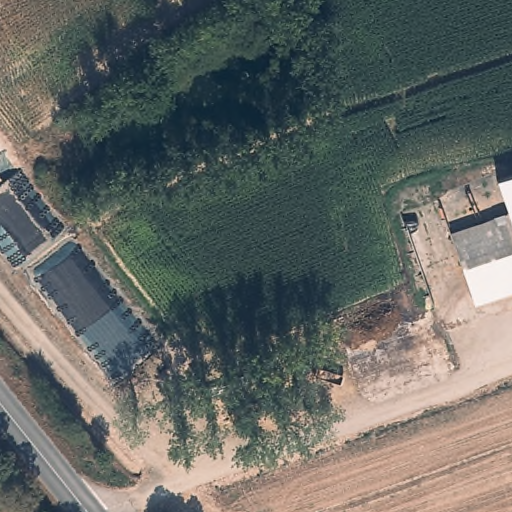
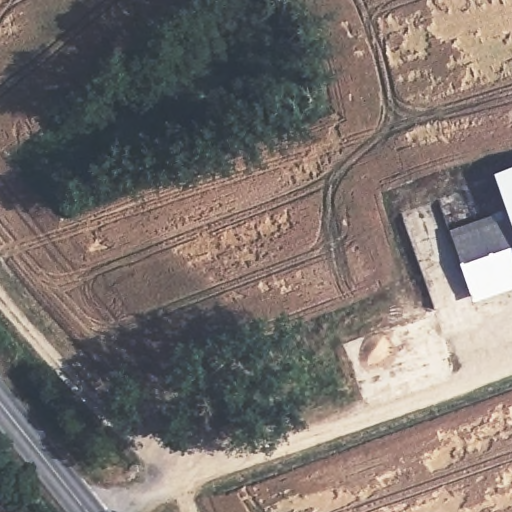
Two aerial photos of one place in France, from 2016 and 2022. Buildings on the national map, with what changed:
unchanged [(512,184),(512,220),(501,188),(512,184)]
unchanged [(457,241),(512,222),(512,288),(477,300),(457,241)]

